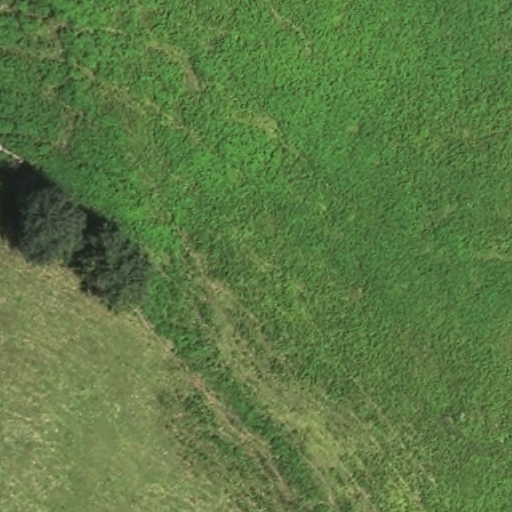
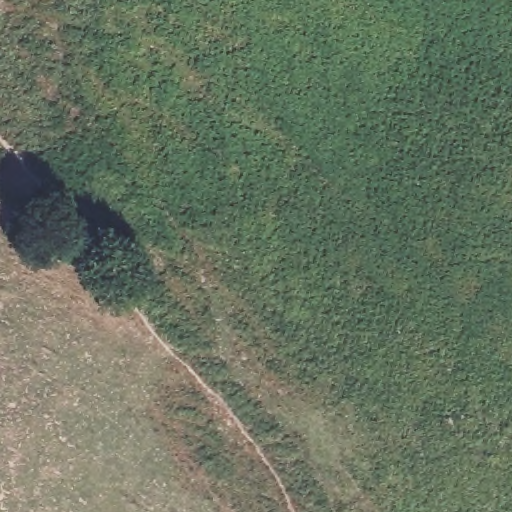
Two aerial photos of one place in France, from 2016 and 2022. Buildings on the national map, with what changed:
[]

